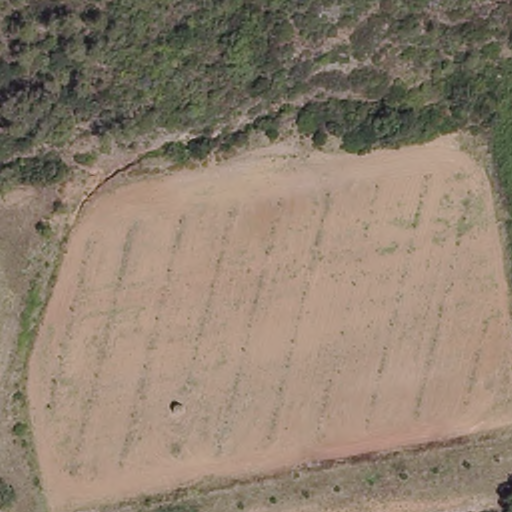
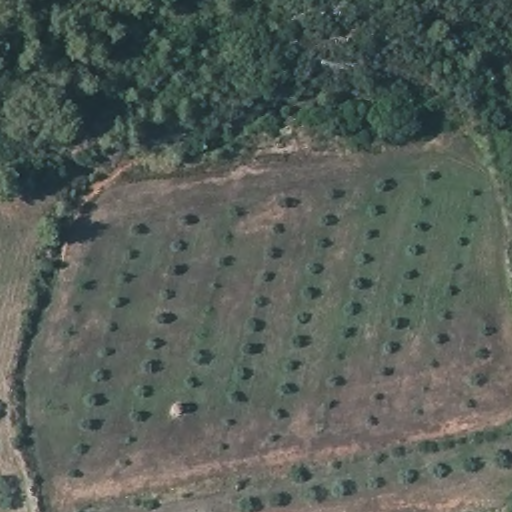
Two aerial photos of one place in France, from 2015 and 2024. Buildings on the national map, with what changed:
[]

